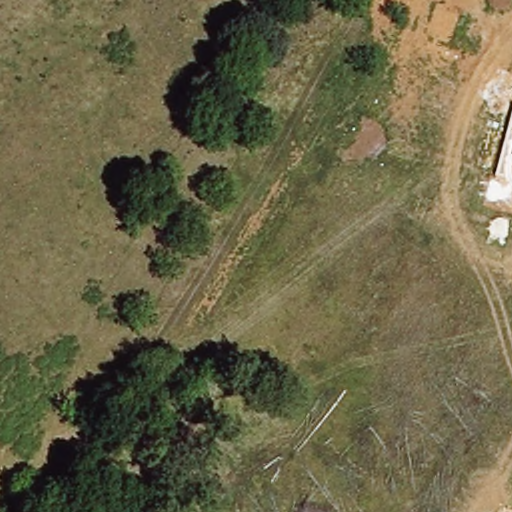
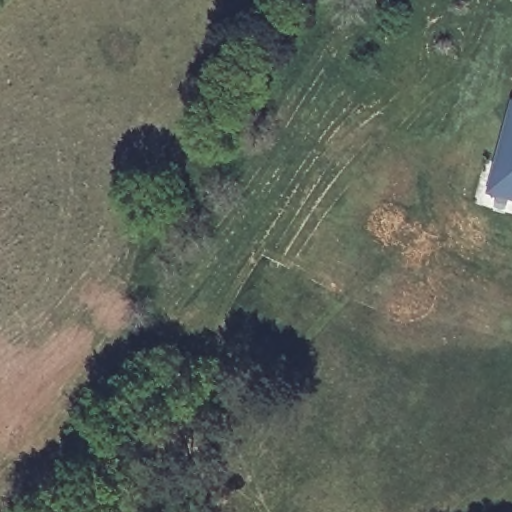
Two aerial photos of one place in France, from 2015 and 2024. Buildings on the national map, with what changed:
new [(512,102),(512,201),(487,194),(512,102)]

